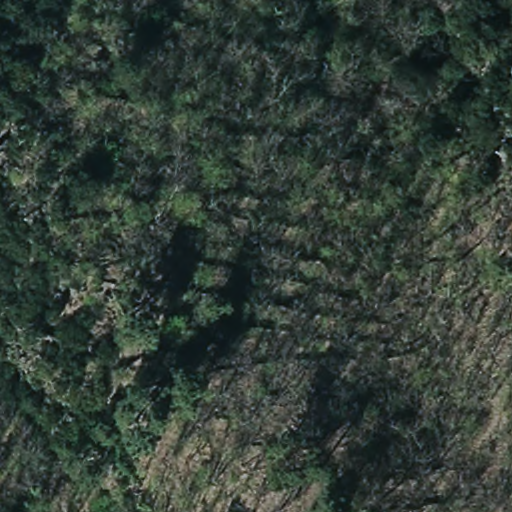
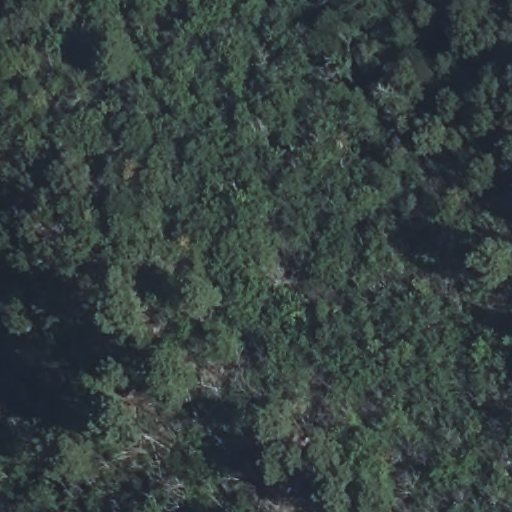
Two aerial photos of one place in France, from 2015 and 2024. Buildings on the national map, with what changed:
[]

